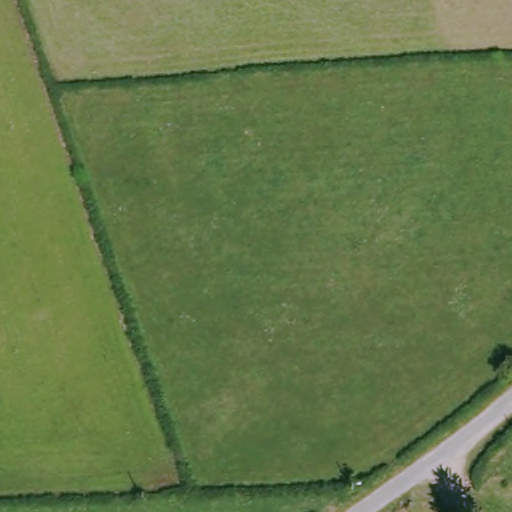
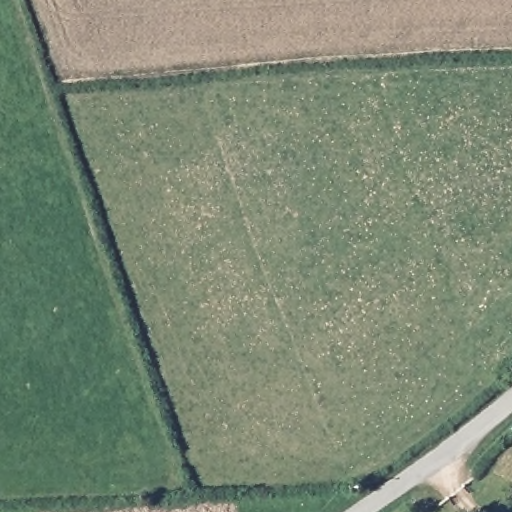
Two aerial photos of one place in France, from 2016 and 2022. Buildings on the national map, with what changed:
[]

